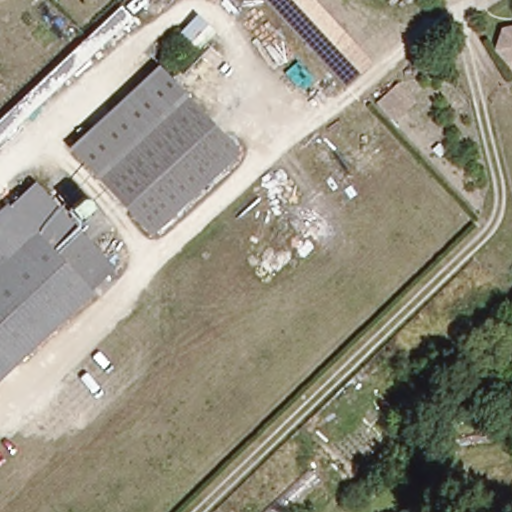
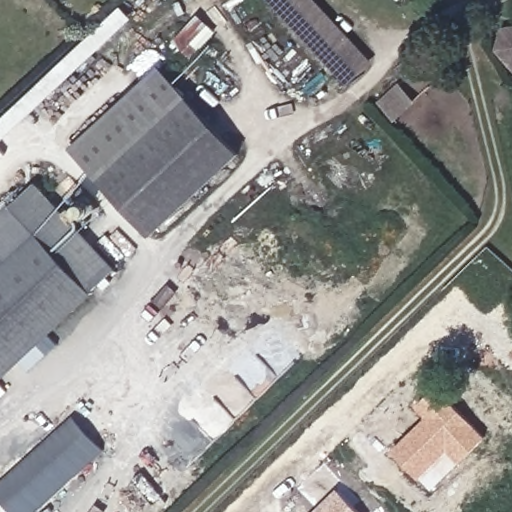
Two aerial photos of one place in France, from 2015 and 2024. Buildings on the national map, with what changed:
unchanged [(346,84),(270,0),(315,0),(372,62),(346,84)]
unchanged [(0,141),(0,118),(120,5),(131,18),(0,141)]
unchanged [(502,29),(512,26),(512,77),(493,50),(502,29)]
unchanged [(71,150),(157,73),(183,99),(96,180),(71,150)]
unchanged [(396,122),(377,102),(401,81),(418,103),(396,122)]
unchanged [(234,154),(146,235),(96,180),(183,99),(234,154)]
unchanged [(31,236),(0,266),(0,213),(30,185),(111,271),(87,295),(31,236)]
unchanged [(31,236),(87,295),(0,376),(0,266),(31,236)]
unchanged [(511,329),(512,330),(512,343),(510,345),(512,348),(512,351),(497,365),(484,351),(500,336),(502,338),(511,329)]
new [(447,451),(419,480),(391,451),(425,418),(415,406),(435,387),(486,437),(458,463),(447,451)]
new [(11,512),(0,512),(0,503),(2,502),(0,500),(0,483),(74,417),(105,450),(38,512),(13,512),(12,511),(11,512)]
new [(360,512),(312,512),(337,488),(360,512)]

